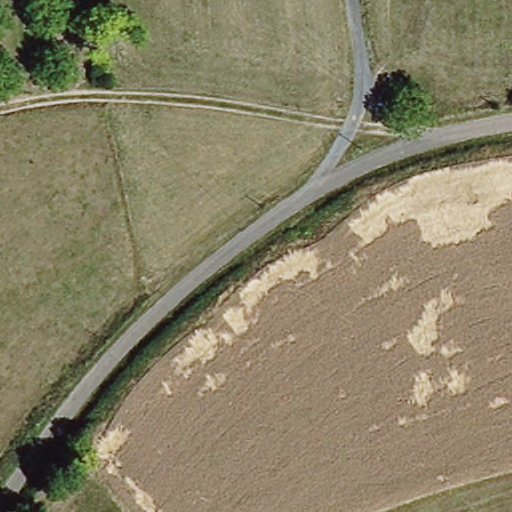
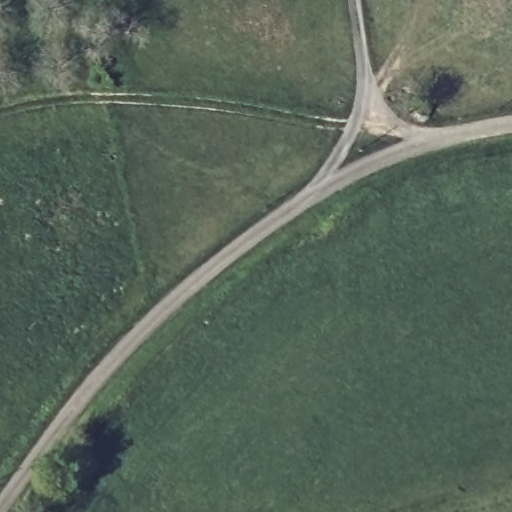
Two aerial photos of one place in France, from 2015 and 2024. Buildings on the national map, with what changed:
unchanged [(398,122),(395,128),(390,131),(385,132),(379,131),(373,128),(370,122),(369,117),(370,111),(373,106),(379,103),(385,101),(390,103),(395,106),(398,111),(400,117),(398,122)]

